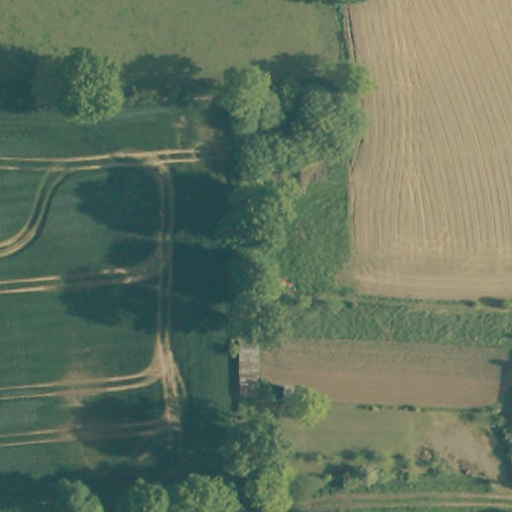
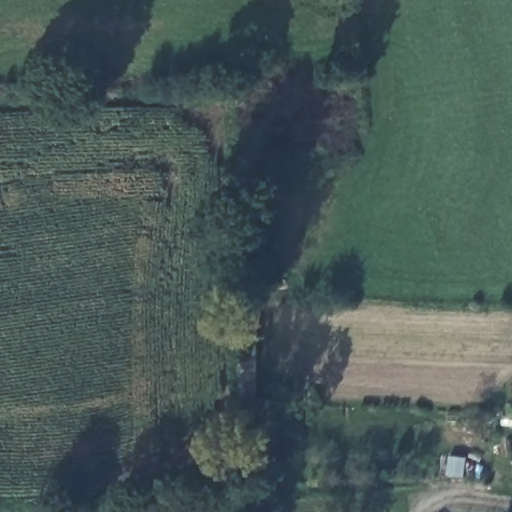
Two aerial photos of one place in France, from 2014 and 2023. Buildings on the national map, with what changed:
unchanged [(243,398),(241,338),(261,338),(259,397),(243,398)]

